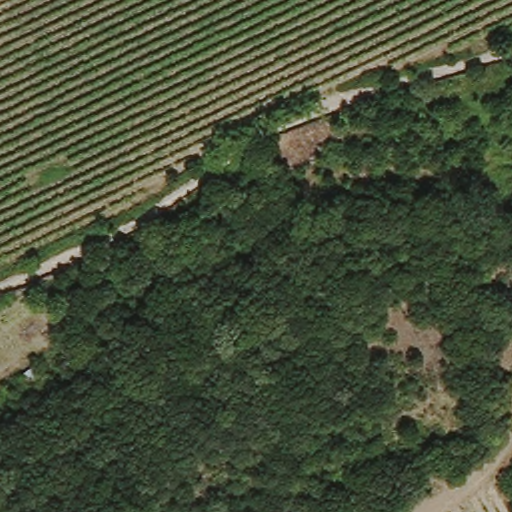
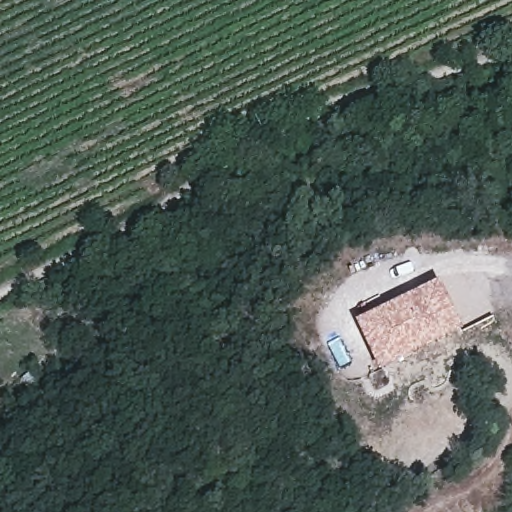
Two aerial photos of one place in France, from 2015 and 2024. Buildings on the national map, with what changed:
new [(439,281),(462,330),(379,369),(356,321),(439,281)]
unchanged [(38,360),(52,381),(33,394),(19,377),(38,360)]

